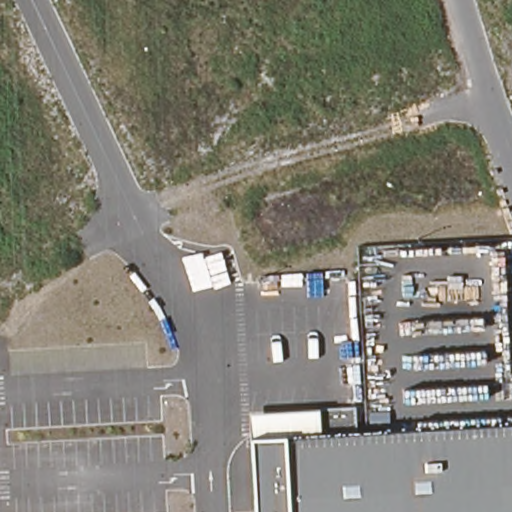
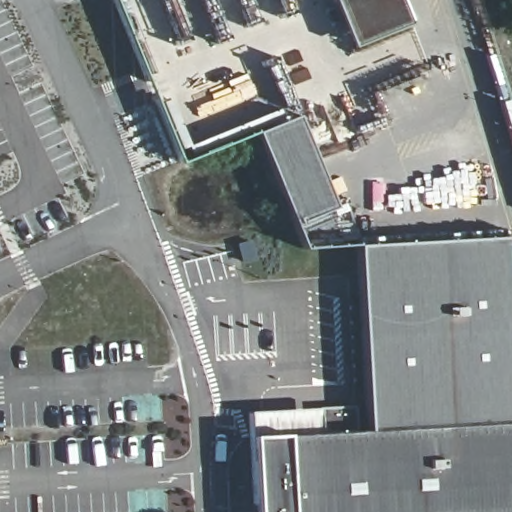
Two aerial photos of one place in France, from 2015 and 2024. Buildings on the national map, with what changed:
new [(332,0),(400,0),(410,24),(351,47),(332,0)]
new [(332,207),(291,223),(255,133),(296,116),(332,207)]
new [(512,296),(512,423),(366,431),(357,246),(509,237),(512,296)]
demolished [(463,293),(363,300),(360,247),(461,242),(463,293)]
unchanged [(355,406),(357,432),(366,431),(512,423),(512,512),(255,512),(251,438),(250,412),(317,408),(355,406)]

